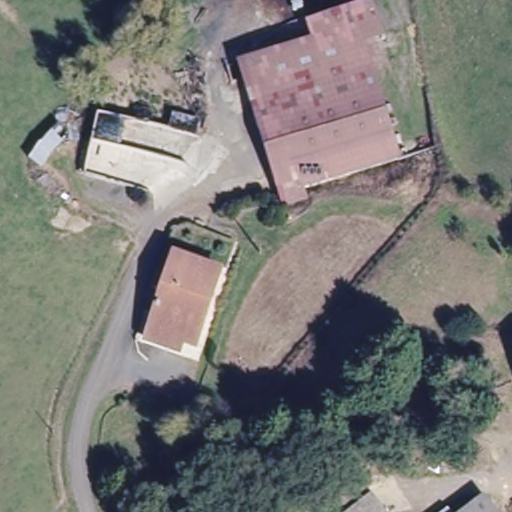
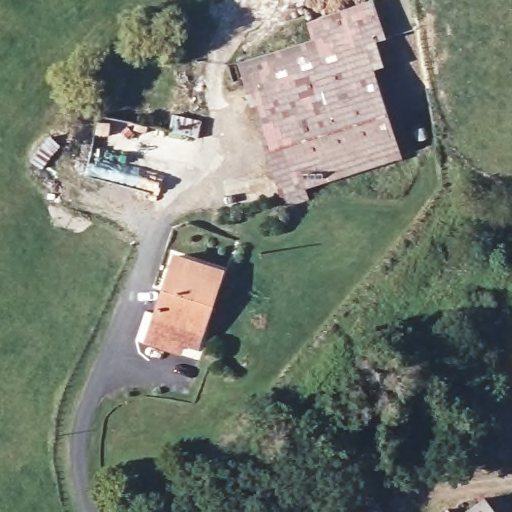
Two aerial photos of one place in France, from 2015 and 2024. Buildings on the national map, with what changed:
unchanged [(398,160),(304,179),(307,196),(285,200),(282,188),(252,50),(320,37),(316,16),(364,8),(398,160)]
unchanged [(207,322),(194,319),(189,330),(159,320),(175,268),(219,280),(207,322)]
unchanged [(383,511),(382,512),(343,512),(367,492),(383,511)]
unchanged [(460,512),(478,497),(491,512),(460,512)]

